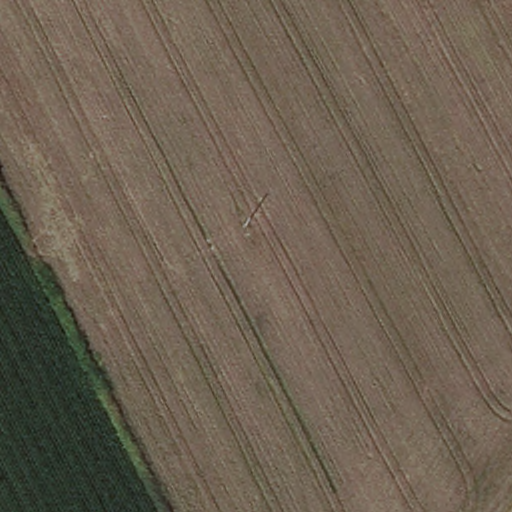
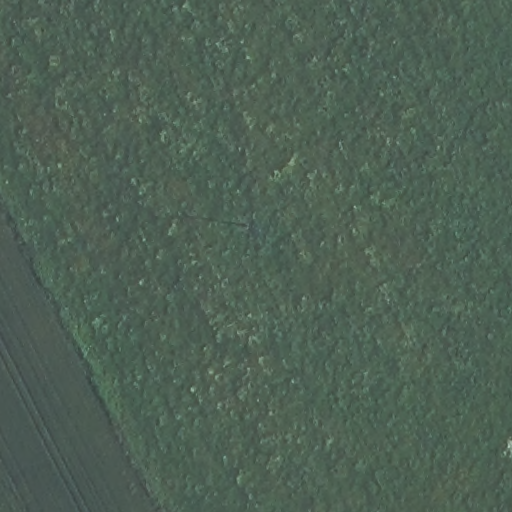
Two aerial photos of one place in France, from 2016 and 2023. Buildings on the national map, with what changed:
[]

